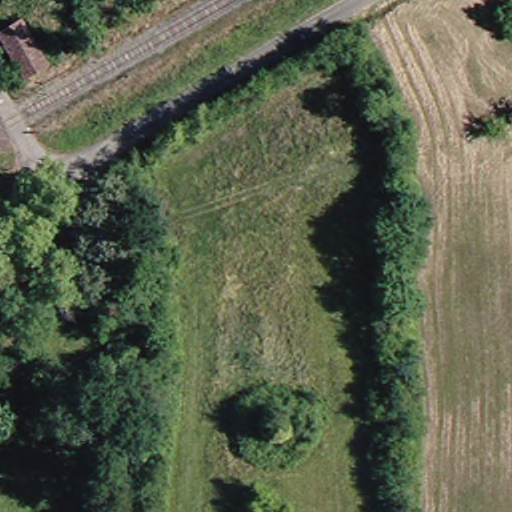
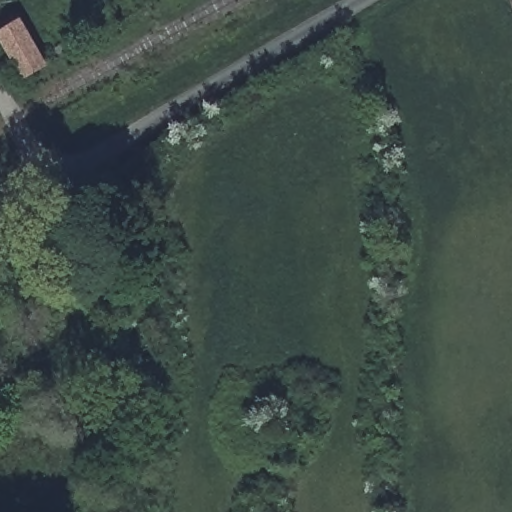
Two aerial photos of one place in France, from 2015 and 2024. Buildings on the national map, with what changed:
unchanged [(18,0),(28,0),(23,5),(18,0)]
unchanged [(0,56),(0,31),(15,25),(33,68),(15,79),(0,56)]

